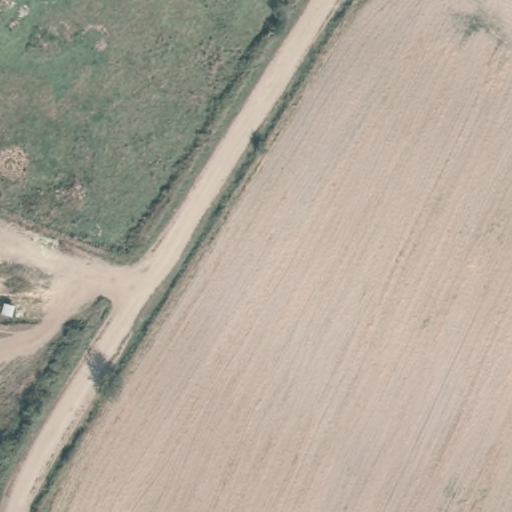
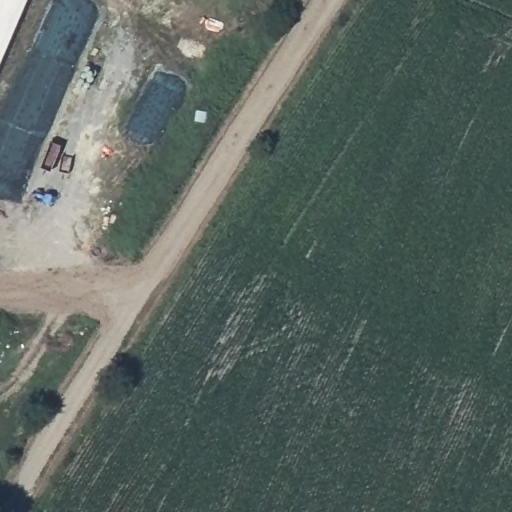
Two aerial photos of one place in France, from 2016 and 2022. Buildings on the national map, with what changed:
new [(0,62),(0,0),(26,0),(0,62)]

